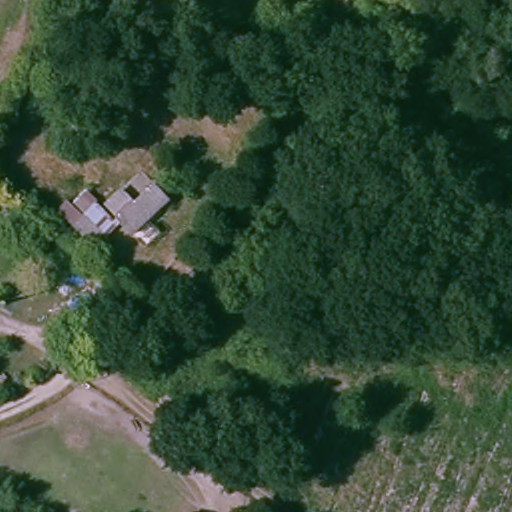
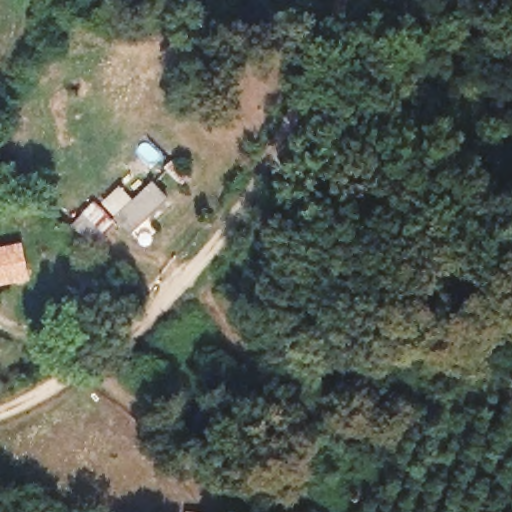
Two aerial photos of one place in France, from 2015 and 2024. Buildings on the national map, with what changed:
unchanged [(106,210),(115,204),(121,210),(149,185),(166,202),(128,235),(119,224),(104,237),(114,250),(100,261),(58,216),(86,190),(106,210)]
new [(23,241),(31,280),(0,286),(0,246),(23,241)]

